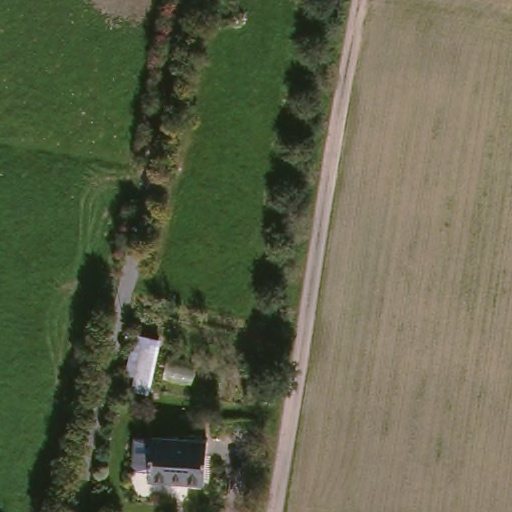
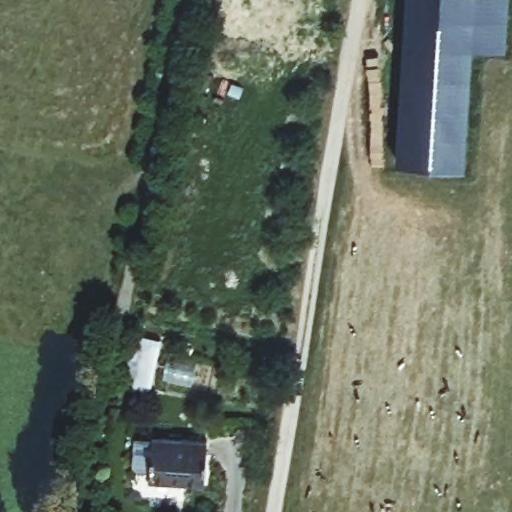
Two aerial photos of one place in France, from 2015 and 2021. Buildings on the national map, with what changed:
new [(472,45),(466,165),(396,160),(406,0),(509,0),(506,46),(472,45)]
unchanged [(160,336),(152,393),(122,385),(131,333),(160,336)]
unchanged [(138,481),(143,439),(199,444),(195,486),(138,481)]

